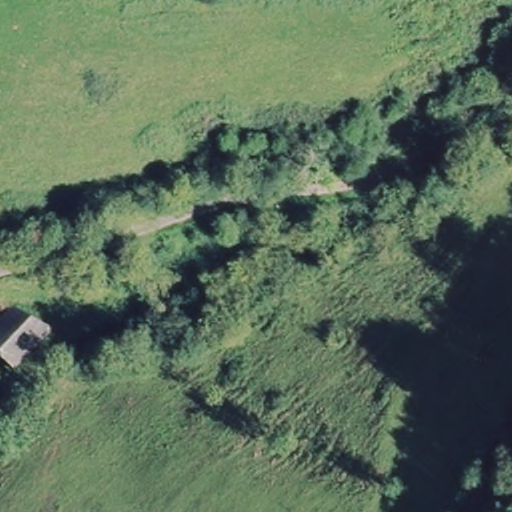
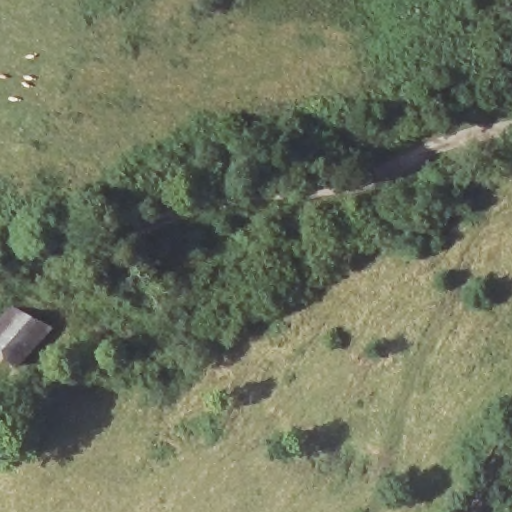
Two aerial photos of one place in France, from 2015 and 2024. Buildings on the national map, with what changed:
unchanged [(0,332),(29,302),(65,322),(24,363),(11,377),(0,367),(0,332)]

